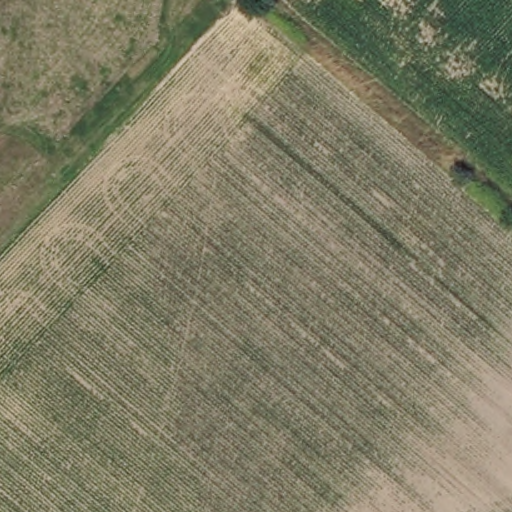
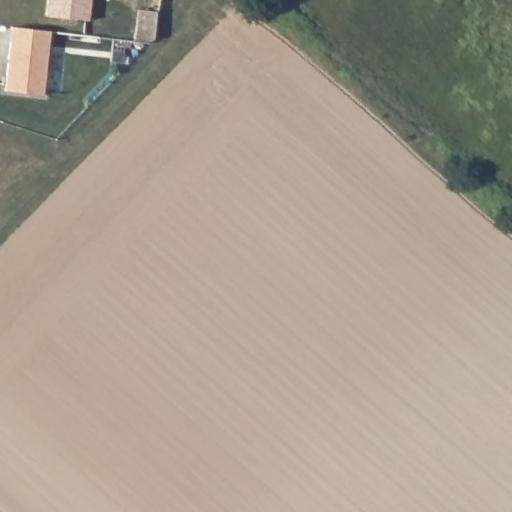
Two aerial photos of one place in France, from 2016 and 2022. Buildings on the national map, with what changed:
new [(50,30),(44,94),(6,90),(12,27),(50,30)]

